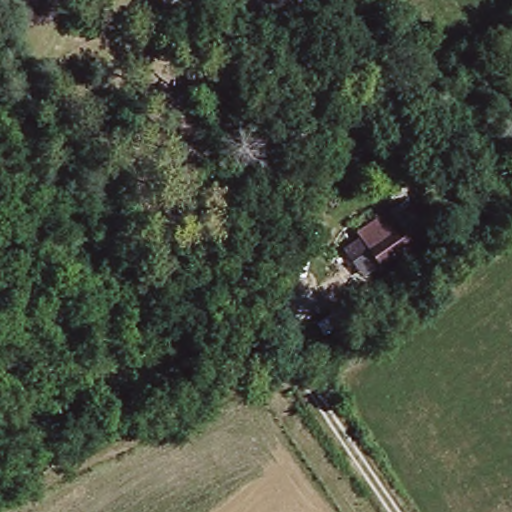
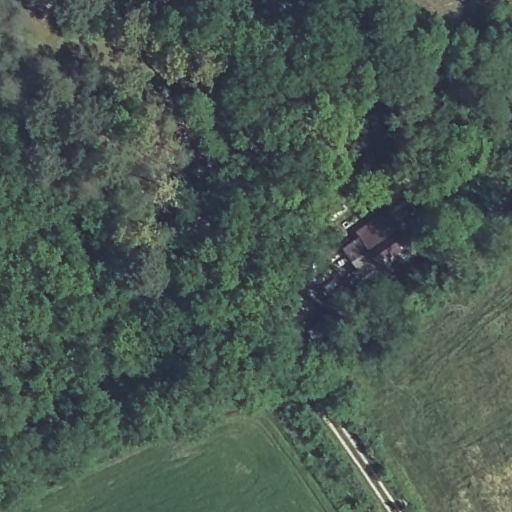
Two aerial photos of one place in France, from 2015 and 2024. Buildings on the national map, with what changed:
unchanged [(381,265),(357,230),(387,206),(414,242),(381,265)]

